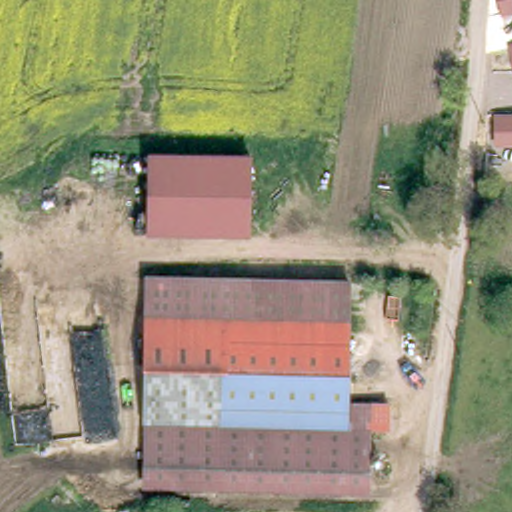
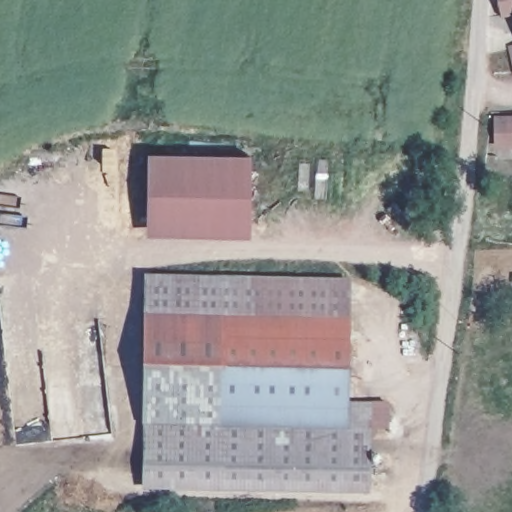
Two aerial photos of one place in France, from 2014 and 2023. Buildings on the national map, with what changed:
unchanged [(509,5),(507,0),(512,0),(512,4),(509,5)]
unchanged [(500,131),(500,107),(512,107),(512,131),(500,131)]
unchanged [(249,169),(245,229),(145,222),(149,162),(249,169)]
unchanged [(145,294),(146,280),(352,290),(352,297),(345,404),(367,405),(364,479),(140,469),(145,294)]
unchanged [(364,479),(362,496),(139,486),(140,469),(364,479)]

